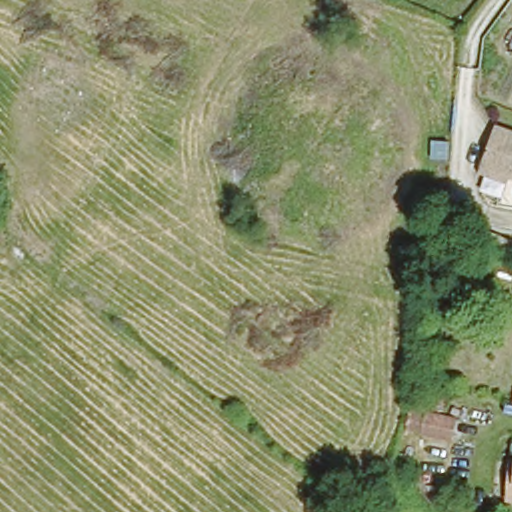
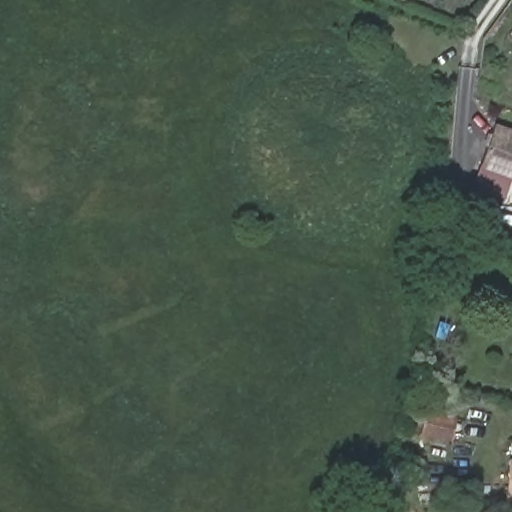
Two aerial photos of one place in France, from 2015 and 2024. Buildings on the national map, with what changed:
unchanged [(512,133),(512,177),(511,176),(482,166),(497,127),(512,133)]
unchanged [(460,418),(455,438),(408,431),(412,408),(460,418)]

